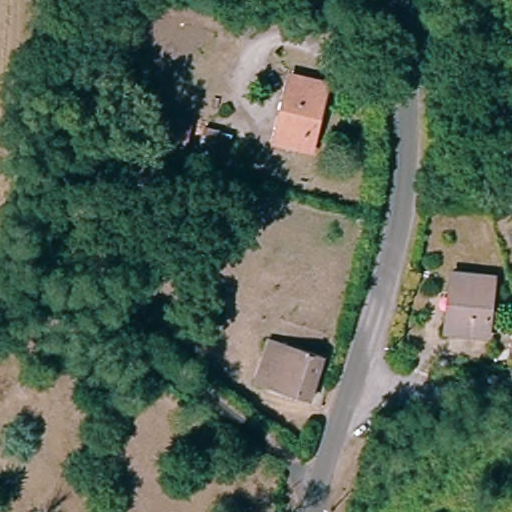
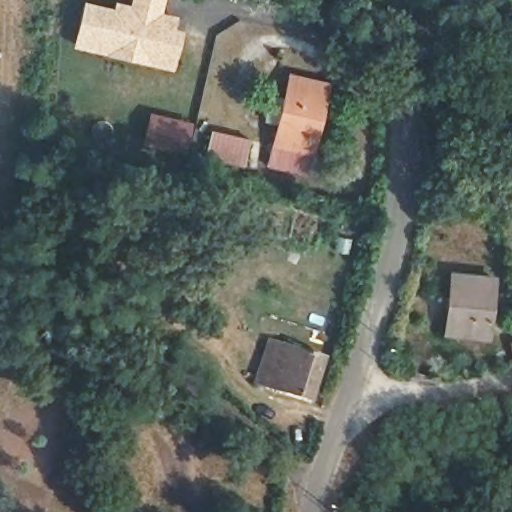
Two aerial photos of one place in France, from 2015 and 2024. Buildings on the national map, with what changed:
new [(85,0),(112,7),(113,0),(116,0),(128,3),(129,0),(165,0),(162,11),(179,16),(176,27),(184,30),(173,72),(71,47),(82,0),(85,0)]
unchanged [(285,79),(302,82),(323,87),(308,152),(271,144),(282,90),(285,79)]
unchanged [(222,161),(168,148),(175,124),(231,136),(222,161)]
unchanged [(446,297),(448,279),(492,282),(486,341),(450,337),(442,337),(446,297)]
unchanged [(267,340),(320,356),(307,400),(265,387),(272,359),(262,356),(267,340)]

